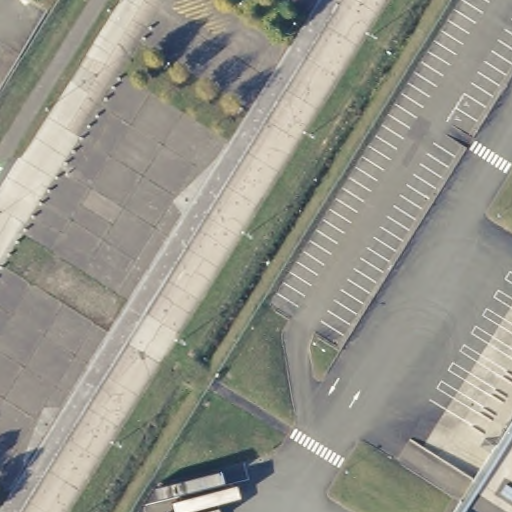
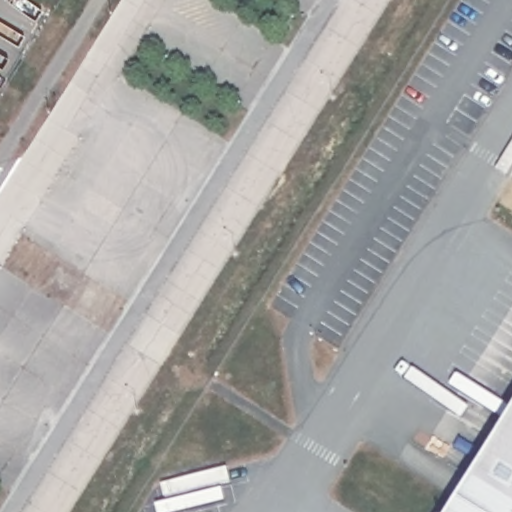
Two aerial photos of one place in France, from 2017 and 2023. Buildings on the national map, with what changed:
unchanged [(453,512),(512,417),(512,512),(453,512)]

